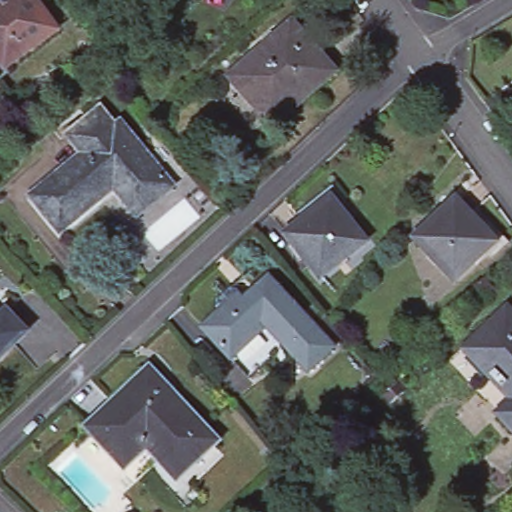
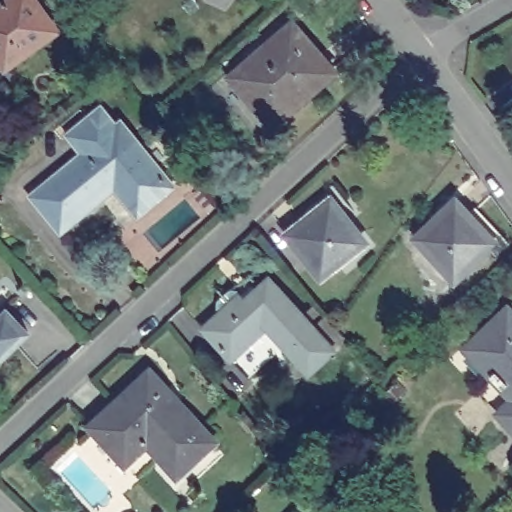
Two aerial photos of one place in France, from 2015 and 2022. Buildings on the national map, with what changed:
unchanged [(0,66),(0,8),(11,0),(31,0),(52,31),(1,67),(0,66)]
unchanged [(274,117),(236,72),(296,23),(334,68),(274,117)]
unchanged [(138,212),(117,184),(63,224),(35,186),(87,147),(71,126),(108,98),(120,114),(125,110),(179,182),(138,212)]
unchanged [(322,281),(288,237),(303,226),(297,218),(335,189),(354,213),(345,219),(366,246),(322,281)]
unchanged [(477,248),(447,274),(414,237),(454,201),(462,211),(471,203),(501,236),(482,253),(477,248)]
unchanged [(269,280),(335,347),(311,371),(285,344),(250,373),(209,322),(227,307),(224,302),(224,295),(237,284),(245,285),(248,290),(251,294),(269,280)]
unchanged [(16,307),(37,329),(0,363),(0,314),(4,318),(16,307)]
unchanged [(498,412),(511,400),(463,348),(504,310),(512,319),(512,427),(498,412)]
unchanged [(183,475),(152,442),(130,463),(97,427),(155,372),(219,441),(183,475)]

